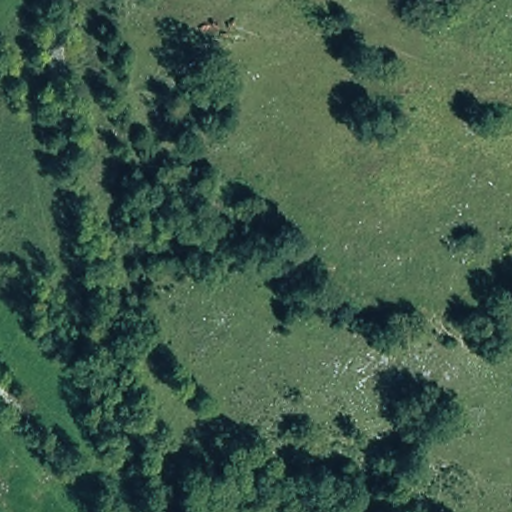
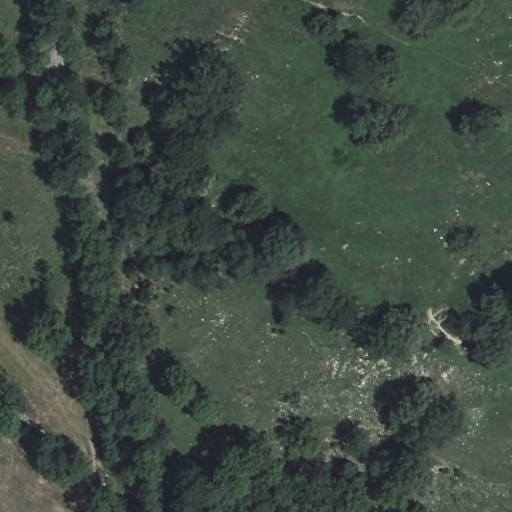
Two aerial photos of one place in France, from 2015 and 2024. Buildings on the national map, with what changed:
[]

